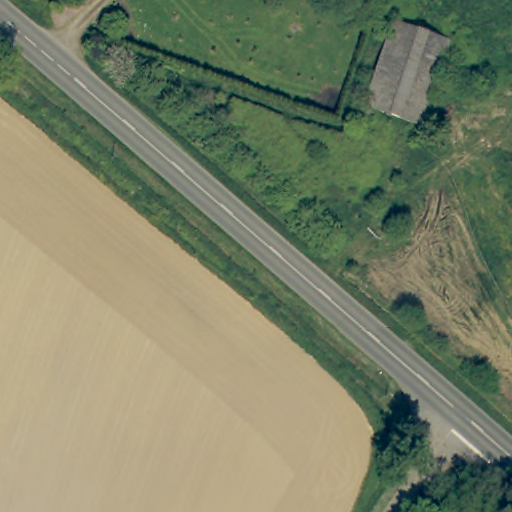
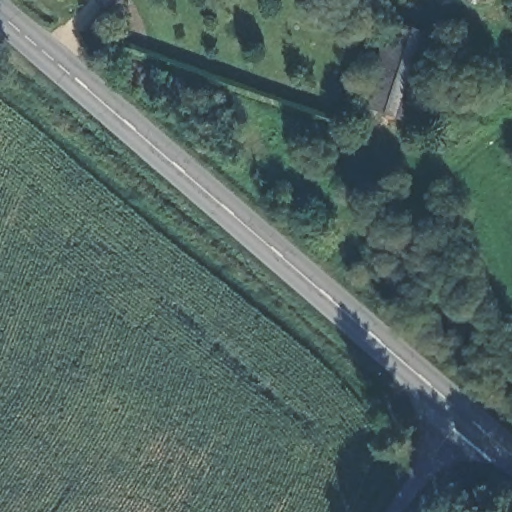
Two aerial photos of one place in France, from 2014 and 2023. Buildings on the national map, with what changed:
unchanged [(384,116),(377,115),(361,109),(395,19),(452,40),(431,97),(422,121),(388,108),(384,116)]

